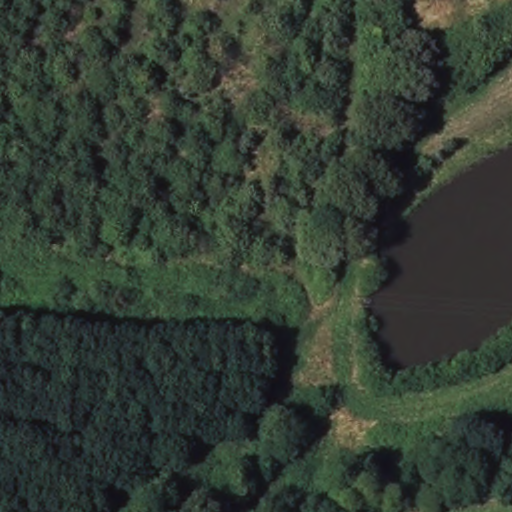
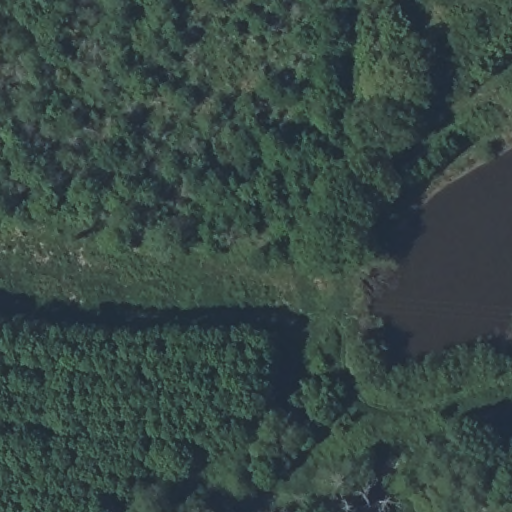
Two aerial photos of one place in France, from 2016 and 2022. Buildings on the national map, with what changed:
[]

